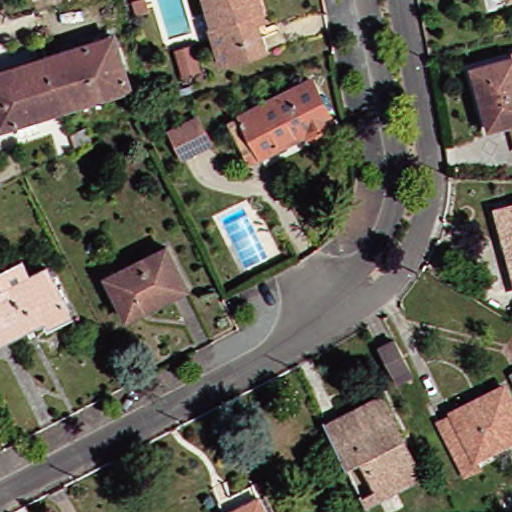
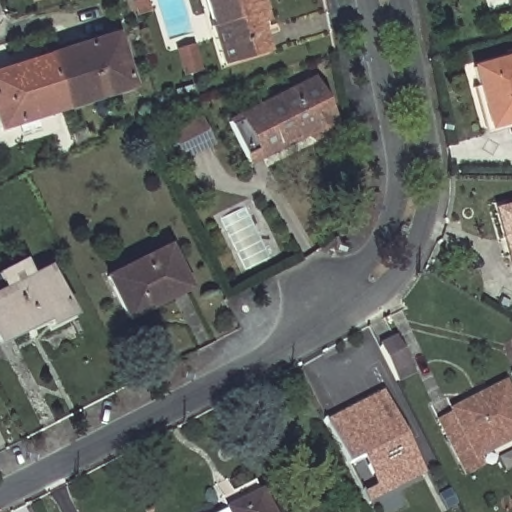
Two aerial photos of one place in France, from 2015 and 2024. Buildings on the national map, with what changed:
unchanged [(273,22),(260,26),(268,54),(225,67),(206,0),(266,0),(273,22)]
unchanged [(116,37),(131,87),(65,109),(48,58),(116,37)]
unchanged [(473,61),(512,51),(512,115),(491,121),(473,61)]
unchanged [(65,109),(0,129),(0,127),(0,73),(48,58),(65,109)]
unchanged [(241,121),(323,79),(345,123),(345,127),(344,131),(342,134),(340,137),(336,139),(332,139),(328,138),(323,136),(319,132),(261,161),(241,121)]
unchanged [(211,145),(184,158),(170,131),(197,117),(206,134),(211,145)]
unchanged [(512,209),(512,222),(508,209),(512,209)]
unchanged [(133,316),(114,276),(171,247),(192,288),(133,316)]
unchanged [(75,315),(57,323),(53,316),(6,341),(0,329),(0,294),(51,268),(75,315)]
unchanged [(399,343),(411,368),(395,376),(383,351),(399,343)]
unchanged [(451,468),(430,427),(443,420),(442,417),(495,390),(512,422),(512,442),(466,465),(464,461),(451,468)]
unchanged [(378,396),(417,476),(362,504),(358,496),(372,489),(357,459),(343,466),(322,424),(378,396)]
unchanged [(257,496),(265,512),(225,512),(234,507),(257,496)]

